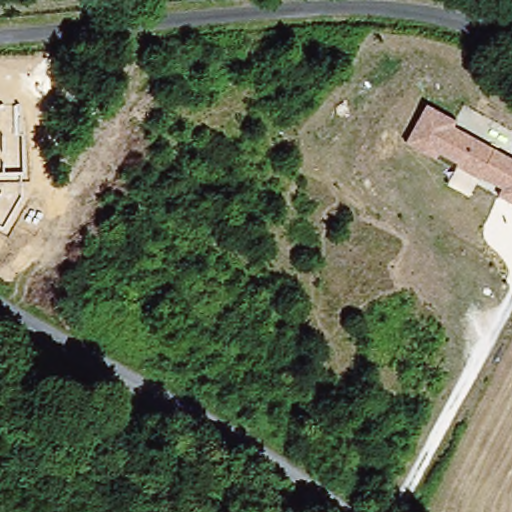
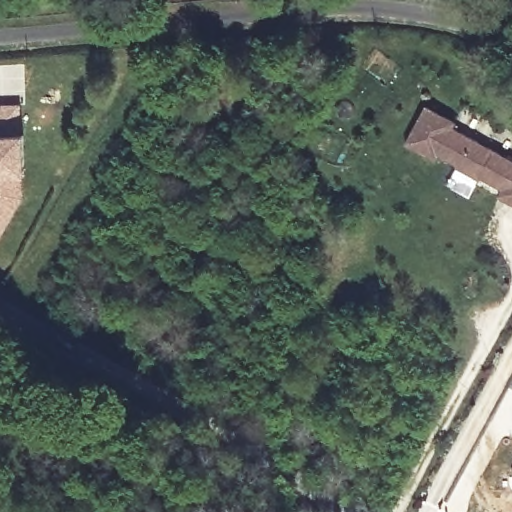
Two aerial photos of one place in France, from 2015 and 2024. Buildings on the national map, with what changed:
new [(24,136),(25,193),(0,237),(0,105),(22,104),(24,136)]
unchanged [(499,200),(503,193),(472,175),(471,178),(447,166),(449,163),(430,153),(426,159),(397,143),(417,105),(445,120),(443,125),(508,160),(511,155),(512,156),(512,207),(499,200)]

